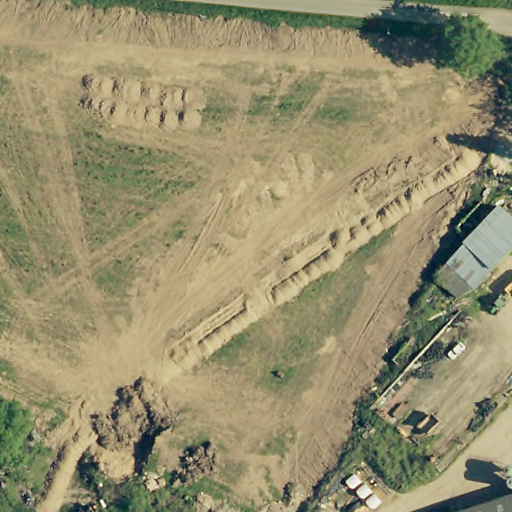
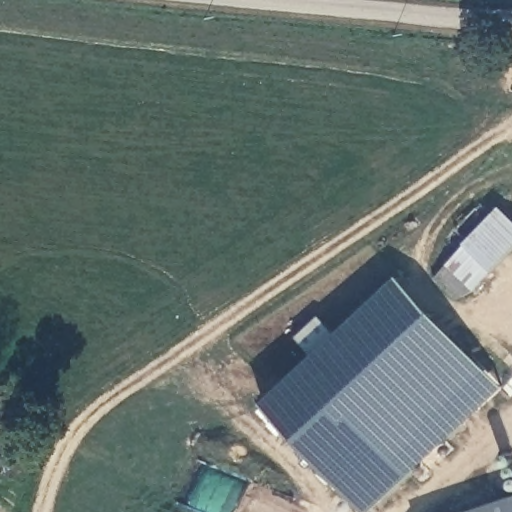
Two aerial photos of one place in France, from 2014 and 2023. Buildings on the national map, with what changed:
new [(500,207),(512,220),(512,251),(471,295),(456,298),(433,281),(500,207)]
demolished [(458,262),(482,282),(462,305),(440,284),(458,262)]
new [(502,387),(370,512),(362,512),(262,406),(400,277),(502,387)]
unchanged [(512,499),(512,512),(475,512),(512,499)]

